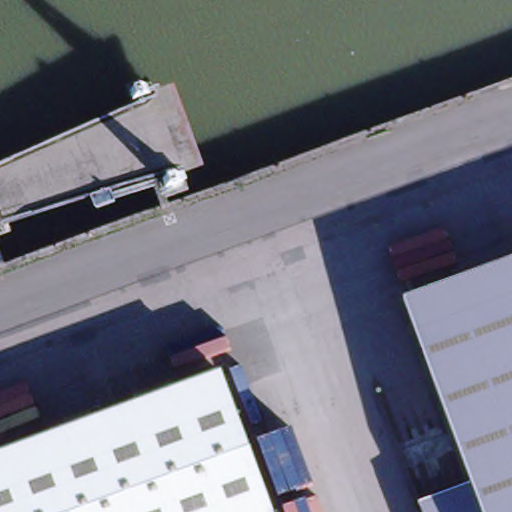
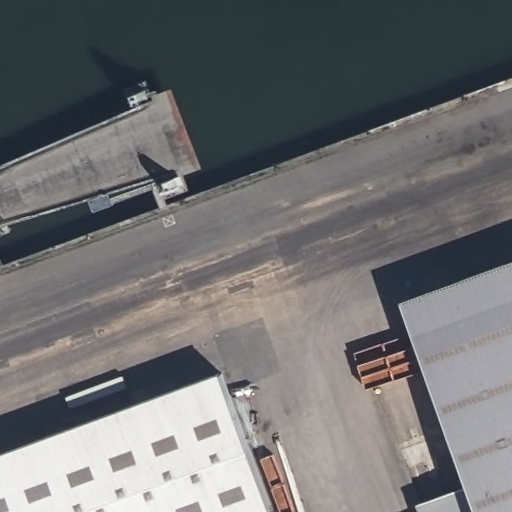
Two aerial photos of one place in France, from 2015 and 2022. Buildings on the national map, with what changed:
unchanged [(512,264),(512,380),(463,399),(426,296),(512,264)]
unchanged [(221,370),(271,512),(0,512),(0,454),(221,370)]
unchanged [(442,504),(455,499),(493,485),(463,399),(512,380),(512,512),(444,512),(442,504)]

